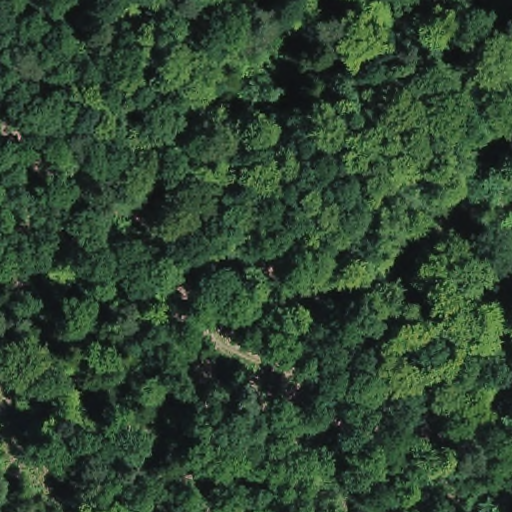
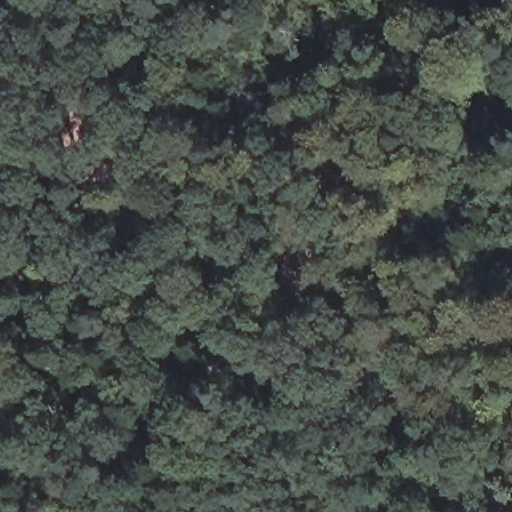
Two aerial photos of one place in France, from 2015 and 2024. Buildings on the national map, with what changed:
[]

